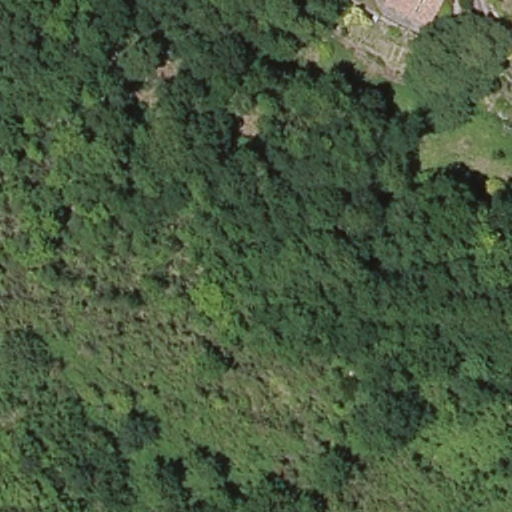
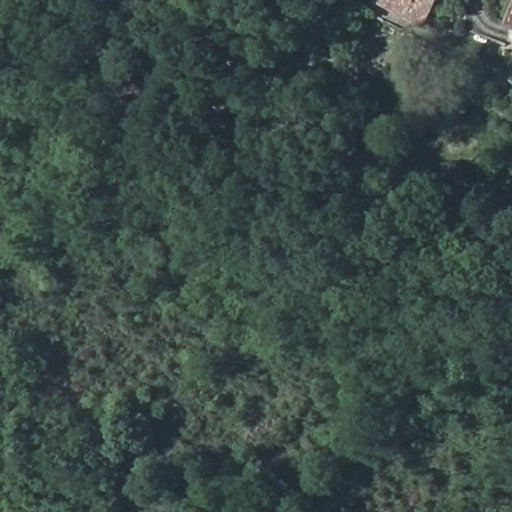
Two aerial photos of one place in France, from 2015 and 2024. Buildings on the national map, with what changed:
unchanged [(381,1),(381,0),(443,0),(430,26),(381,1)]
unchanged [(512,11),(512,23),(507,21),(512,11)]
unchanged [(489,30),(482,42),(469,35),(475,22),(489,30)]

